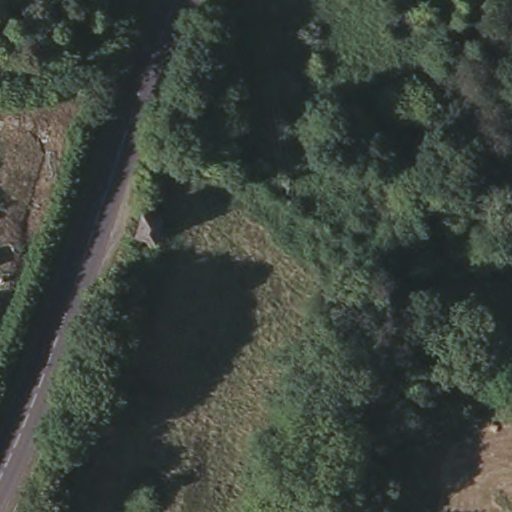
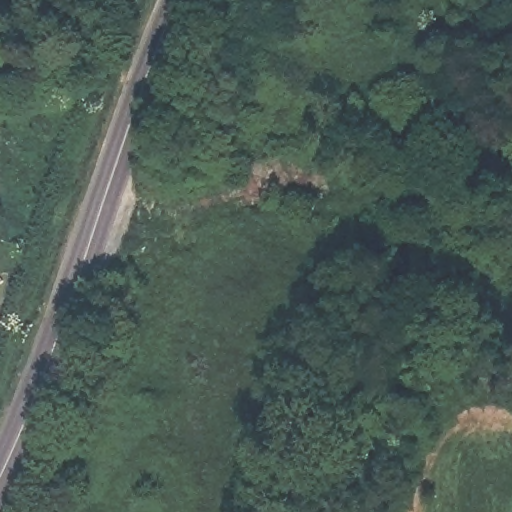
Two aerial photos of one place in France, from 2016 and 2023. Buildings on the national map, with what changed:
unchanged [(161,215),(153,237),(135,229),(144,207),(161,215)]

